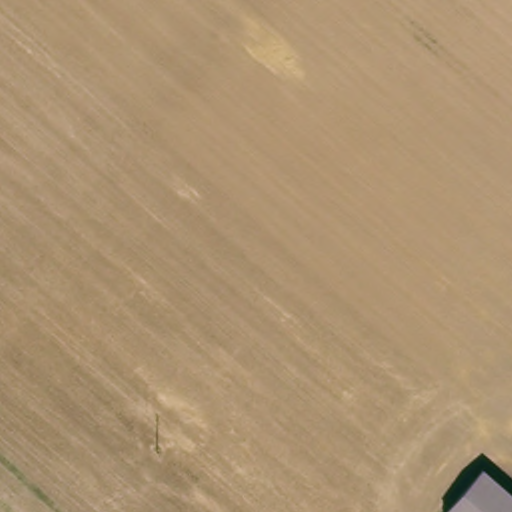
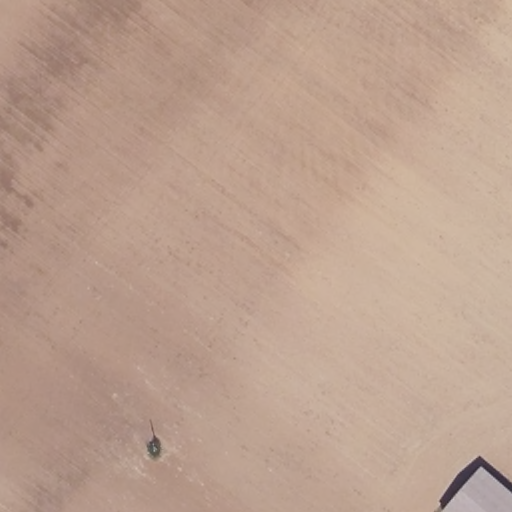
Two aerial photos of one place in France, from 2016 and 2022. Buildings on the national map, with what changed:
unchanged [(483,467),(512,491),(512,512),(446,512),(483,467)]

